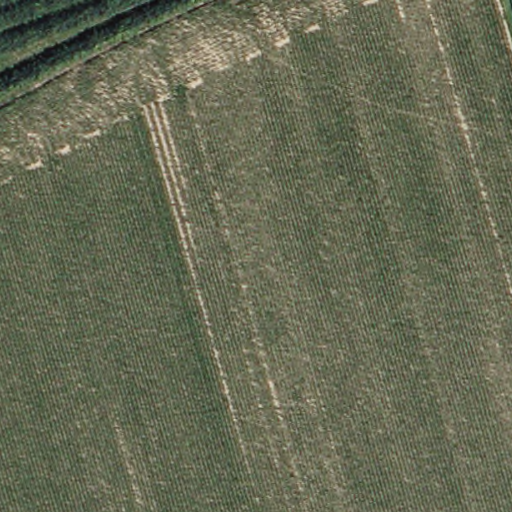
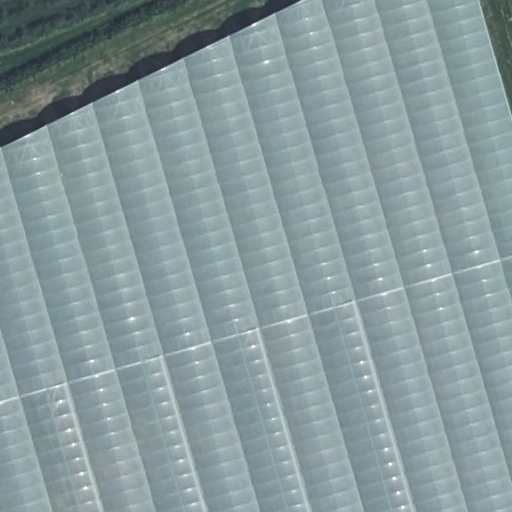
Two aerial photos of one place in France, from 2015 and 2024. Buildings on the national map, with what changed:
new [(512,512),(0,512),(0,148),(301,0),(476,0),(512,128),(512,512)]

